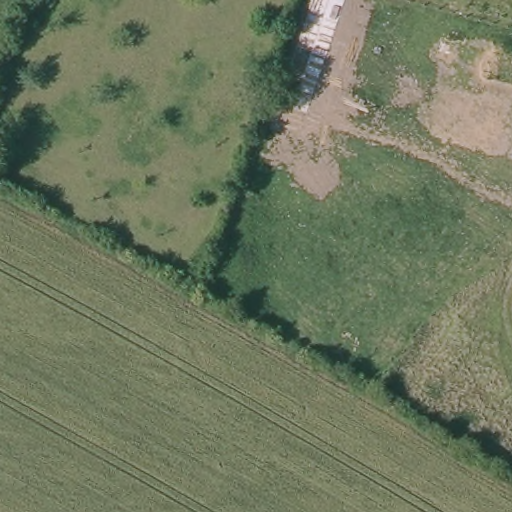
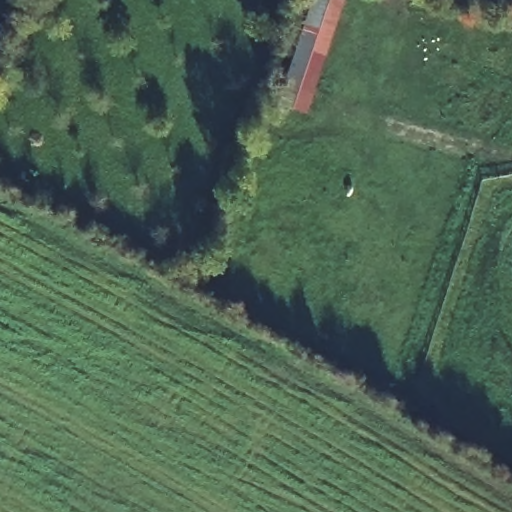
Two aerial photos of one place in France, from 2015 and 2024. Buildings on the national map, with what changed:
new [(344,0),(306,113),(279,104),(314,0),(344,0)]

